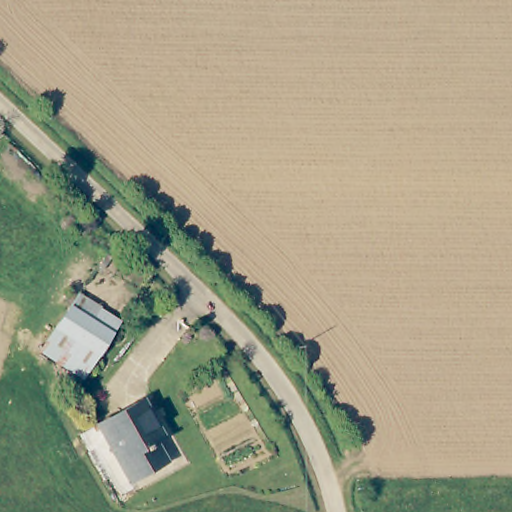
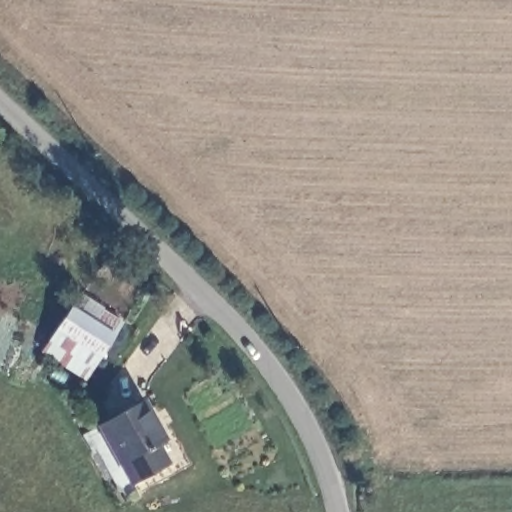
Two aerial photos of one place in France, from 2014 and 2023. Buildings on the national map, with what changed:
unchanged [(117,328),(80,383),(37,356),(73,300),(117,328)]
unchanged [(164,439),(156,445),(167,463),(131,483),(99,425),(143,401),(164,439)]

